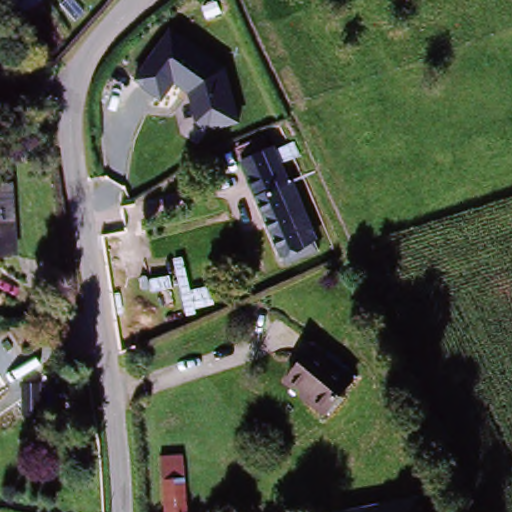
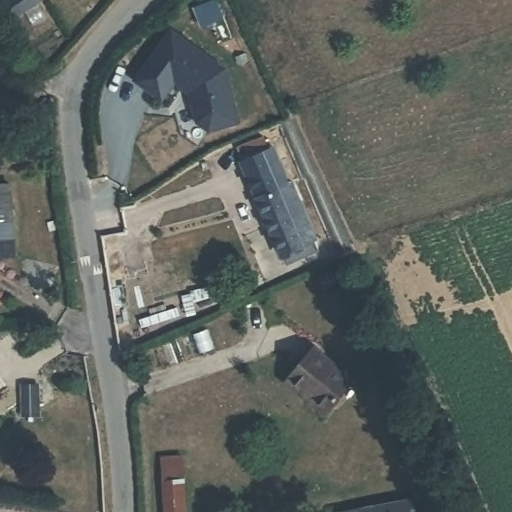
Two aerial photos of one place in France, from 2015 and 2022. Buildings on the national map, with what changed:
unchanged [(45,6),(42,0),(55,0),(45,6)]
unchanged [(171,30),(230,73),(242,121),(208,131),(196,124),(189,95),(172,85),(161,101),(134,80),(171,30)]
unchanged [(296,181),(321,229),(280,250),(244,182),(237,168),(274,148),(281,162),(291,181),(296,181)]
unchanged [(11,186),(13,256),(0,256),(0,186),(11,186)]
unchanged [(319,352),(351,387),(318,418),(286,383),(319,352)]
unchanged [(90,381),(91,410),(76,411),(75,382),(90,381)]
unchanged [(178,459),(188,512),(168,512),(161,462),(178,459)]
unchanged [(415,512),(373,512),(414,505),(415,512)]

